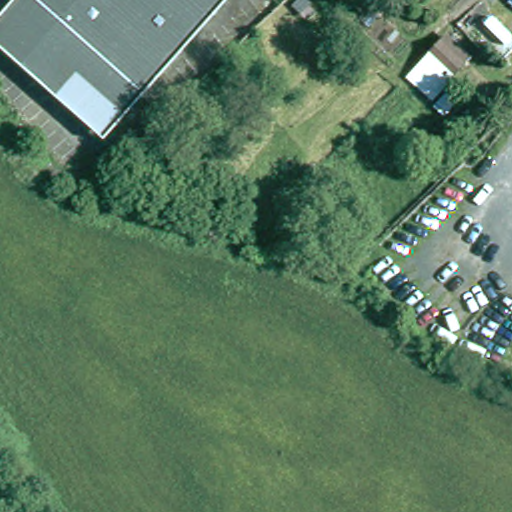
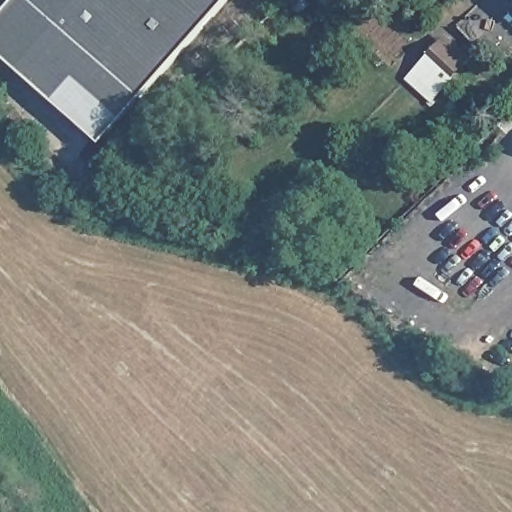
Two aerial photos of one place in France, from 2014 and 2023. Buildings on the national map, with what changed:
unchanged [(107,143),(0,48),(0,20),(17,0),(35,0),(146,99),(107,143)]
unchanged [(146,99),(35,0),(234,0),(201,36),(146,99)]
unchanged [(422,92),(453,61),(475,81),(442,111),(422,92)]

